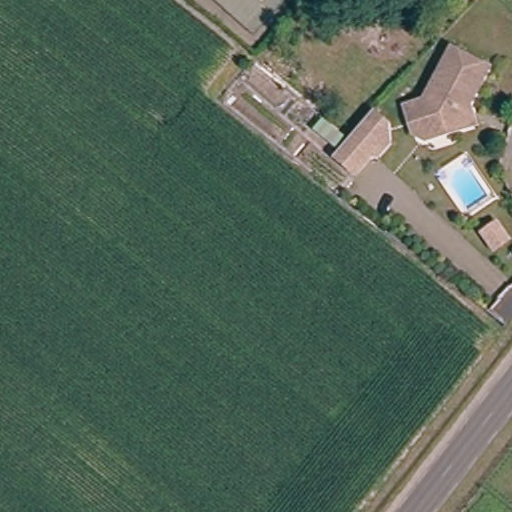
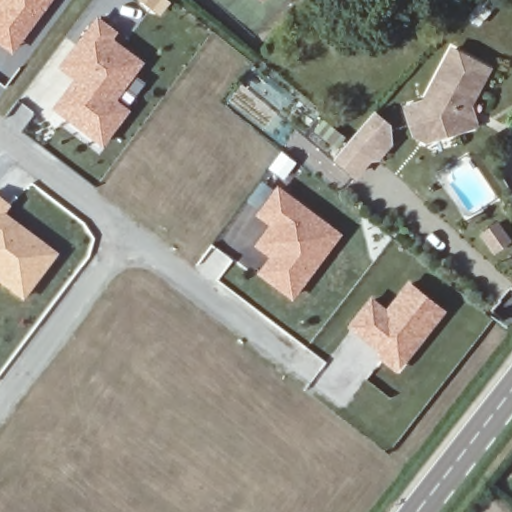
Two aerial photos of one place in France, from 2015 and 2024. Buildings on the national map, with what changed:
new [(0,45),(0,0),(53,0),(13,54),(0,45)]
new [(159,16),(140,0),(170,0),(170,1),(159,16)]
new [(116,31),(110,39),(142,62),(114,100),(126,109),(104,140),(59,107),(80,78),(64,67),(97,20),(116,31)]
unchanged [(439,142),(427,136),(424,126),(413,130),(407,112),(426,107),(455,56),(491,76),(466,119),(470,132),(439,142)]
unchanged [(347,160),(360,143),(386,117),(400,131),(400,140),(381,160),(364,177),(347,160)]
new [(344,232),(294,300),(257,273),(269,256),(254,244),(269,225),(255,214),(278,184),(344,232)]
new [(0,212),(0,202),(5,205),(0,212)]
new [(25,298),(0,278),(0,212),(54,254),(25,298)]
unchanged [(497,254),(482,235),(498,222),(512,239),(512,242),(497,254)]
new [(446,312),(399,371),(380,361),(379,348),(348,326),(371,296),(386,308),(408,281),(446,312)]

